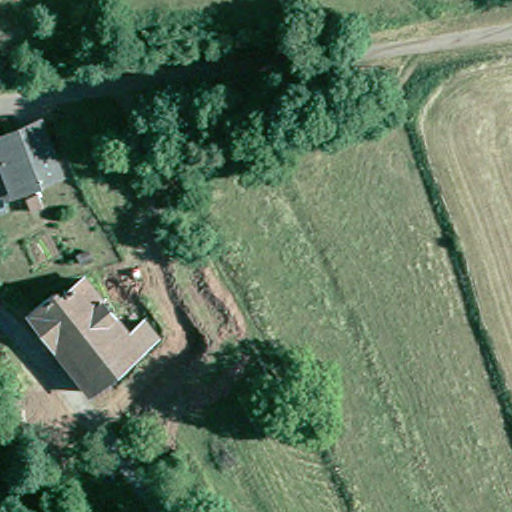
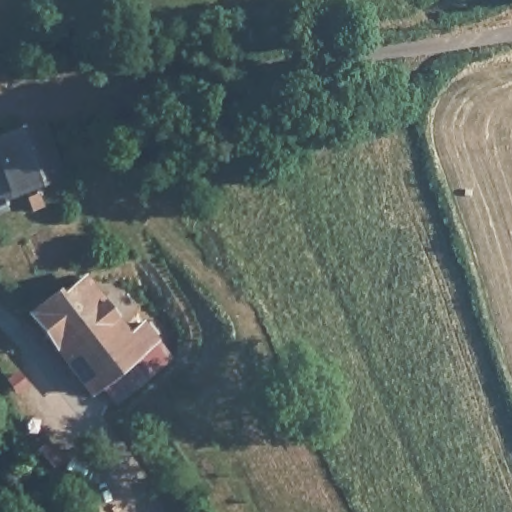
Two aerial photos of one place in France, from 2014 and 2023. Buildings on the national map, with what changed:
unchanged [(63,179),(0,198),(0,148),(0,140),(44,126),(63,179)]
unchanged [(0,209),(0,206),(1,209),(0,209)]
unchanged [(123,332),(138,325),(148,340),(86,388),(25,307),(49,288),(58,297),(83,276),(123,332)]
unchanged [(0,372),(0,362),(8,356),(26,378),(17,388),(0,372)]

